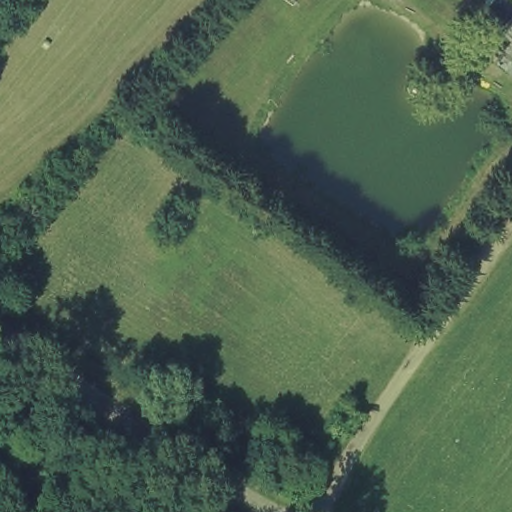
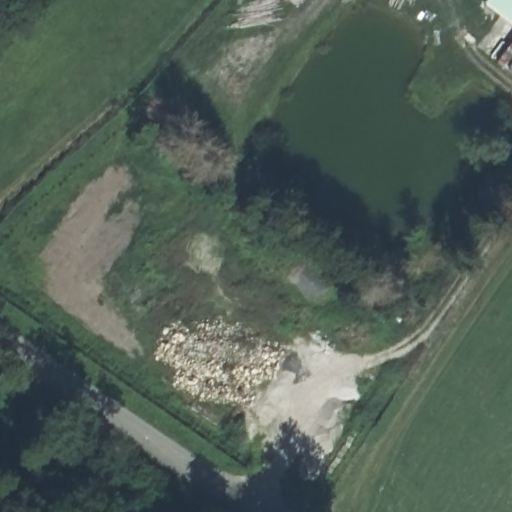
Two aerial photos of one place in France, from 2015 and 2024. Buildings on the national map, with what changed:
unchanged [(486,56),(511,15),(494,0),(512,0),(512,73),(486,56)]

